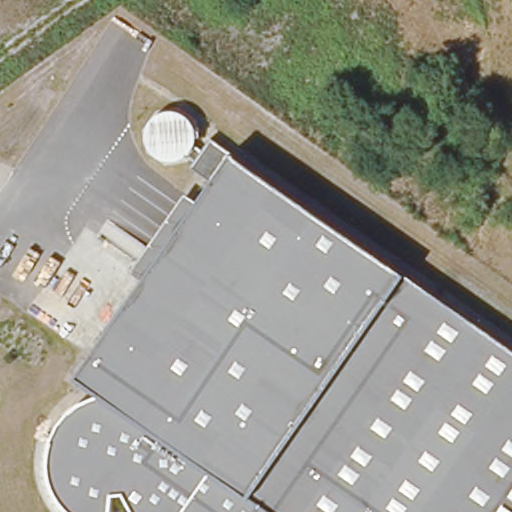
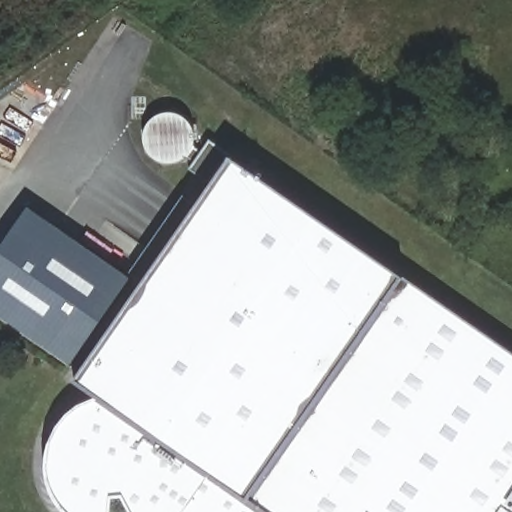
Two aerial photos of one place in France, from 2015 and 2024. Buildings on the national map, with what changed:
unchanged [(135,512),(124,493),(111,493),(108,512),(70,512),(54,490),(49,467),(49,446),(59,425),(75,406),(105,394),(79,376),(145,281),(131,271),(185,197),(199,205),(213,184),(191,169),(210,141),(233,156),(405,274),(512,349),(512,512),(135,512)]
new [(82,371),(0,313),(0,245),(29,204),(130,274),(131,271),(145,281),(82,371)]

